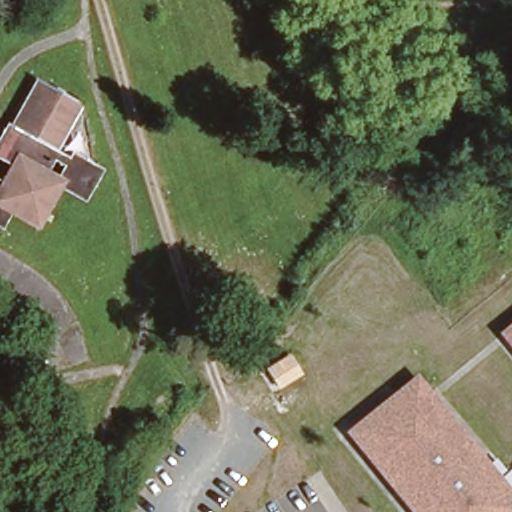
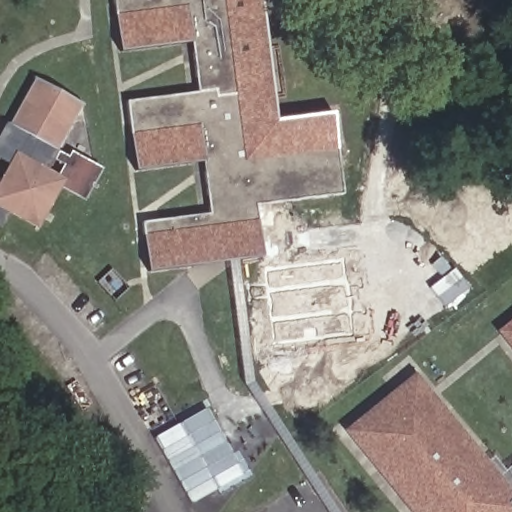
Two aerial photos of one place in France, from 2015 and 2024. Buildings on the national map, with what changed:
new [(113,0),(260,0),(275,119),(331,112),(335,150),(340,194),(256,205),(258,220),(262,258),(147,272),(141,222),(210,214),(205,162),(135,170),(125,101),(197,93),(192,42),(119,51),(113,0)]
unchanged [(0,213),(0,189),(12,162),(0,155),(0,138),(30,75),(80,103),(49,166),(51,172),(60,177),(39,220),(5,203),(0,213)]
unchanged [(69,156),(90,166),(80,187),(60,177),(69,156)]
unchanged [(496,332),(512,320),(512,352),(496,332)]
unchanged [(277,387),(267,368),(290,355),(301,374),(277,387)]
unchanged [(415,372),(512,489),(512,512),(409,512),(343,431),(415,372)]
new [(192,503),(155,439),(205,409),(243,474),(192,503)]

